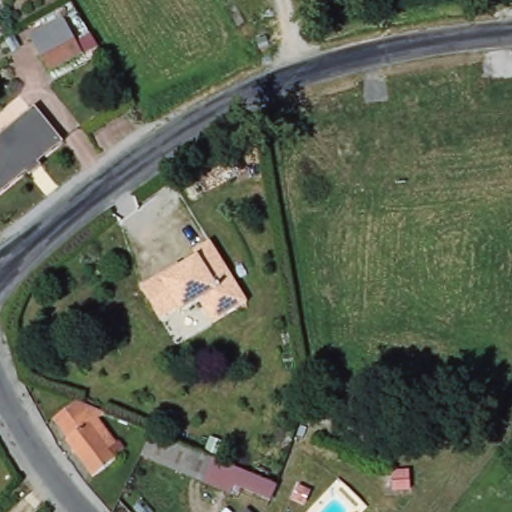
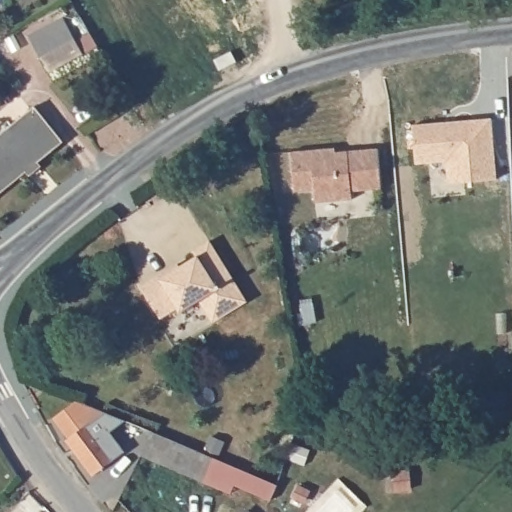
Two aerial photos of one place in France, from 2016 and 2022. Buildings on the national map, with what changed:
unchanged [(83,45),(49,63),(41,48),(75,30),(83,45)]
unchanged [(68,141),(0,196),(0,141),(40,109),(68,141)]
new [(491,119),(496,180),(448,184),(447,162),(416,164),(413,126),(491,119)]
new [(326,150),(327,154),(378,149),(382,189),(352,192),(353,200),(316,203),(315,190),(295,192),(291,153),(326,150)]
unchanged [(250,299),(216,320),(203,299),(183,310),(180,307),(164,317),(143,284),(161,274),(165,279),(175,274),(177,278),(186,272),(182,265),(200,254),(197,249),(212,239),(250,299)]
unchanged [(83,402),(112,414),(105,420),(119,440),(123,438),(131,448),(120,457),(121,459),(97,477),(71,441),(73,439),(59,419),(83,402)]
unchanged [(336,416),(332,429),(310,421),(315,409),(336,416)]
unchanged [(278,486),(270,503),(234,487),(241,471),(278,486)]

